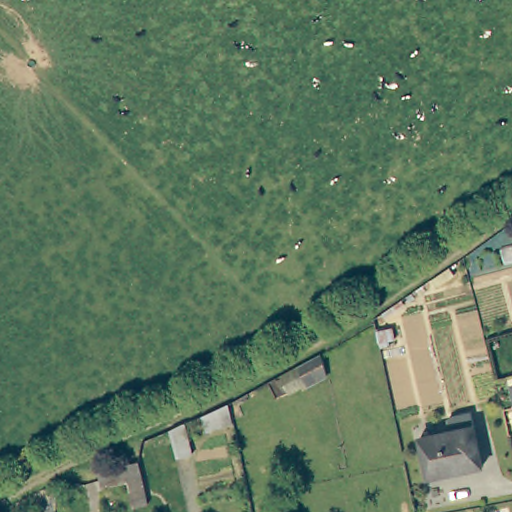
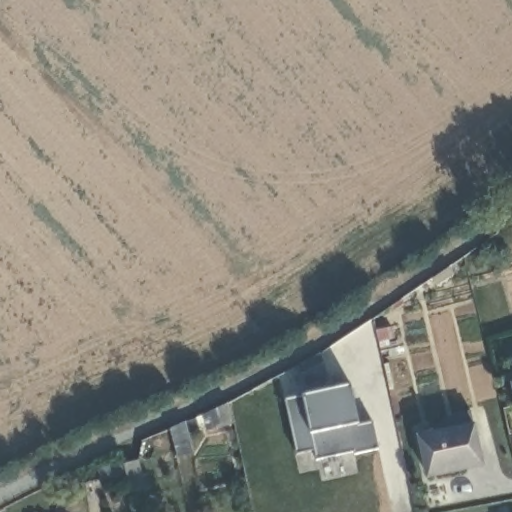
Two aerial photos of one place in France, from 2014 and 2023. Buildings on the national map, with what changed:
unchanged [(395,326),(397,336),(381,339),(379,328),(395,326)]
unchanged [(325,352),(330,375),(311,384),(302,366),(325,352)]
new [(360,423),(360,426),(373,423),(379,448),(356,453),(355,451),(318,461),(315,450),(298,454),(287,400),(351,386),(360,423)]
unchanged [(234,402),(239,421),(213,428),(208,415),(234,402)]
unchanged [(471,415),(480,470),(427,480),(420,440),(450,435),(448,423),(455,418),(471,415)]
unchanged [(189,422),(195,453),(182,456),(175,429),(189,422)]
unchanged [(145,463),(154,505),(140,508),(129,466),(145,463)]

